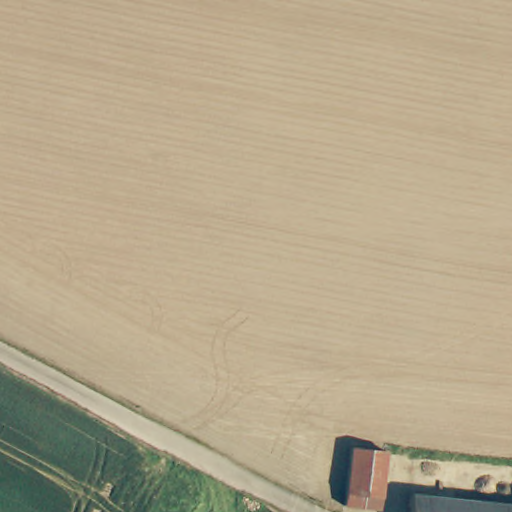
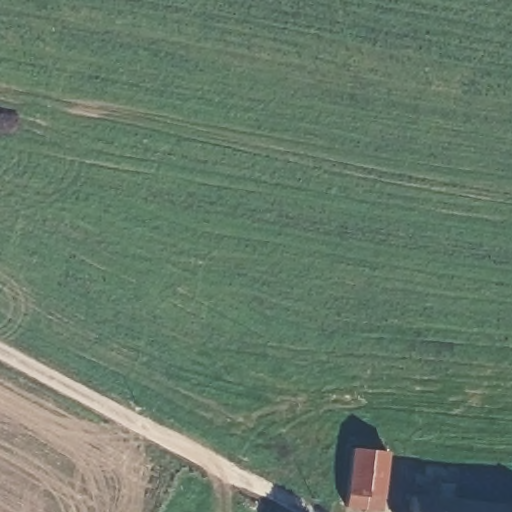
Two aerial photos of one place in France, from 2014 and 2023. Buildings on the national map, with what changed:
unchanged [(340,506),(347,448),(382,451),(375,510),(340,506)]
unchanged [(512,506),(512,512),(404,512),(406,495),(512,506)]

